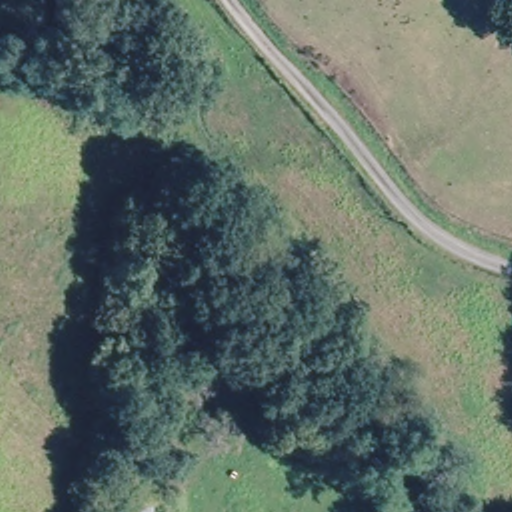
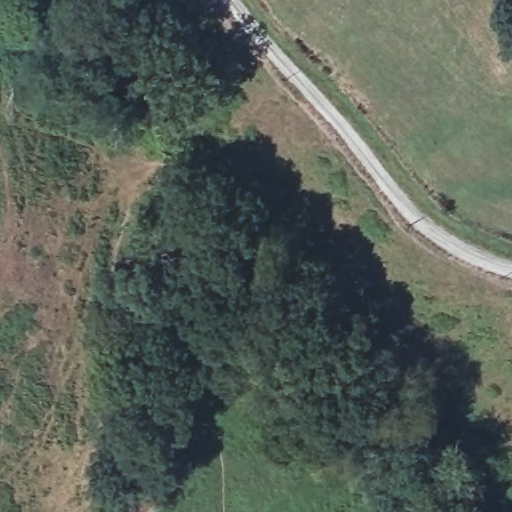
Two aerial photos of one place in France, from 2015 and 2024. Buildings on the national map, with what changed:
unchanged [(99,512),(109,471),(144,477),(139,500),(153,503),(152,512),(99,512)]

